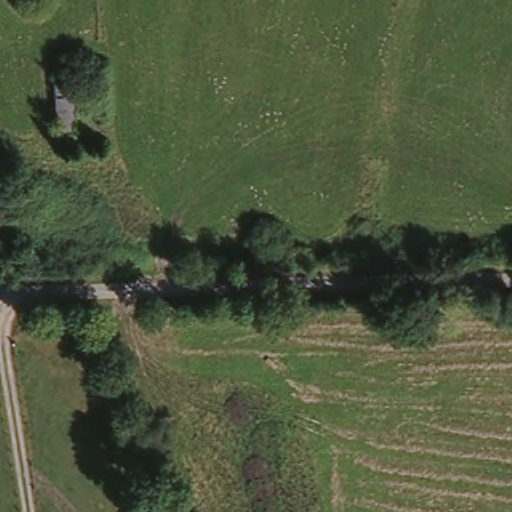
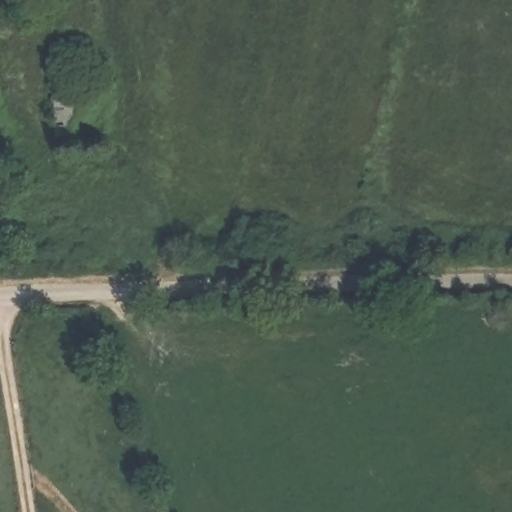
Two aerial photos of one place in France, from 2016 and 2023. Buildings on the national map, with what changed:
unchanged [(53,81),(76,80),(79,148),(58,150),(53,81)]

